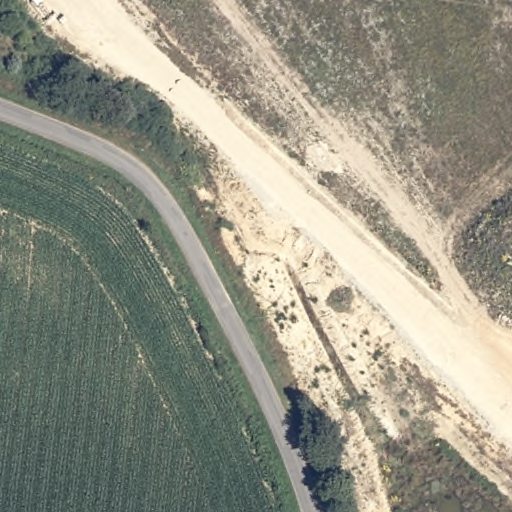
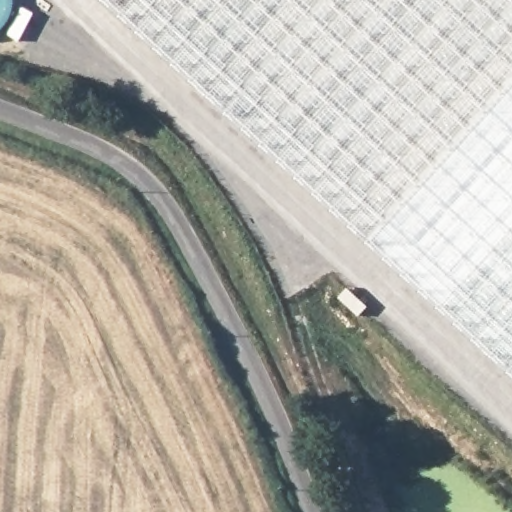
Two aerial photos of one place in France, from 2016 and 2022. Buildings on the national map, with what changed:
new [(11,9),(3,29),(0,31),(0,0),(10,0),(11,9)]
new [(512,374),(104,0),(512,0),(512,374)]

